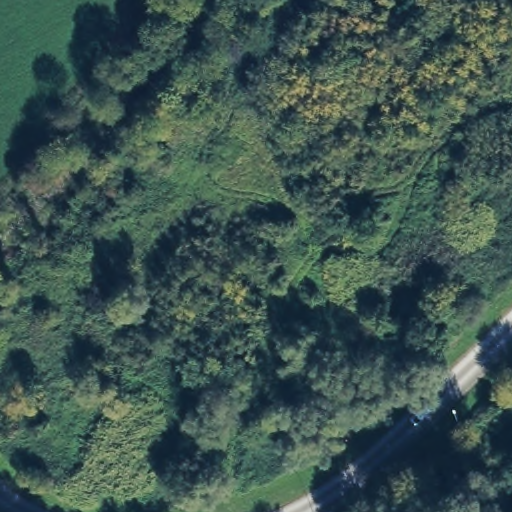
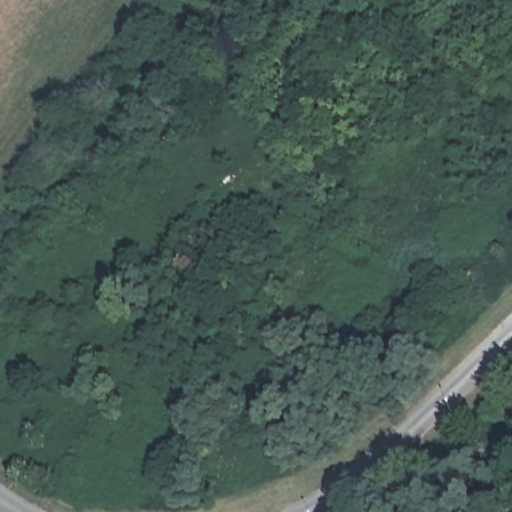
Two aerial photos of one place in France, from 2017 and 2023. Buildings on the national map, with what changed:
[]

